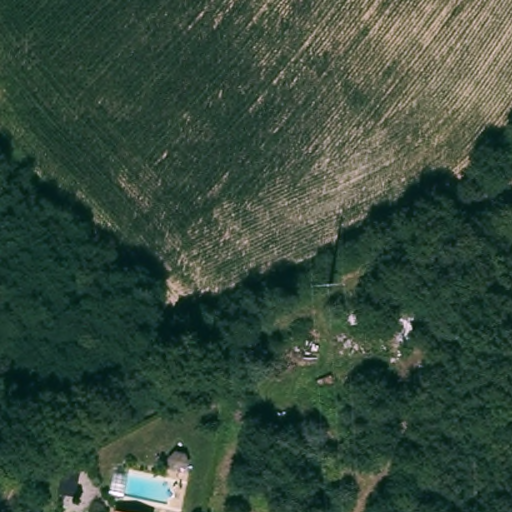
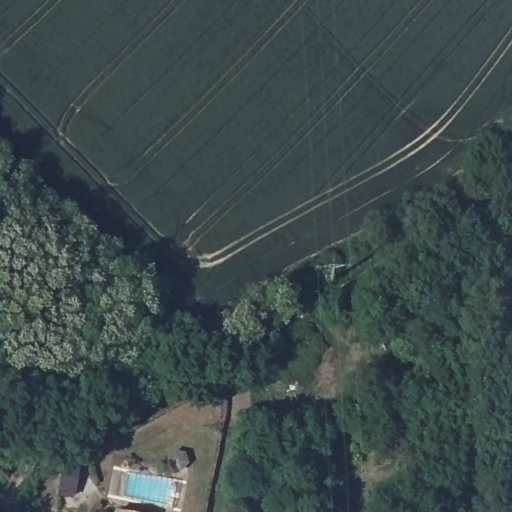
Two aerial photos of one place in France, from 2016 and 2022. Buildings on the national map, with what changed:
unchanged [(85,469),(79,500),(62,497),(68,466),(85,469)]

